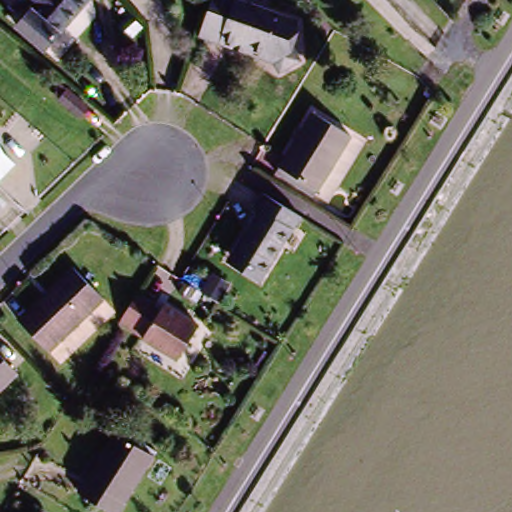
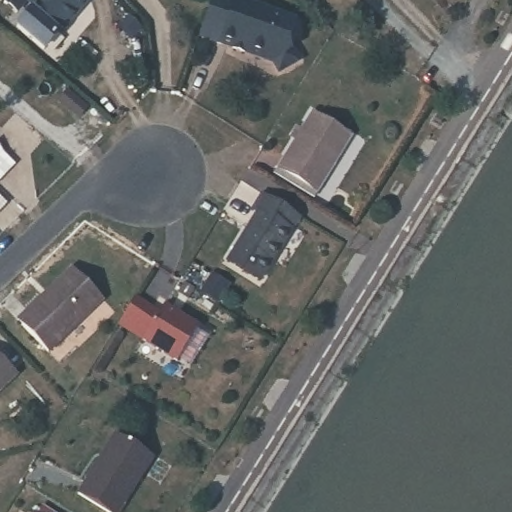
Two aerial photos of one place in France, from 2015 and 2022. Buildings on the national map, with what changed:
unchanged [(49,50),(22,27),(40,6),(33,0),(23,11),(11,1),(12,0),(93,0),(49,50)]
unchanged [(214,0),(238,0),(237,1),(296,22),(288,41),(300,61),(279,72),(268,53),(247,45),(245,52),(232,48),(235,41),(223,37),(221,44),(200,36),(214,0)]
unchanged [(59,101),(67,91),(87,106),(78,116),(59,101)]
unchanged [(314,197),(275,174),(275,173),(312,113),(352,136),(314,197)]
unchanged [(15,166),(0,181),(0,150),(3,155),(15,166)]
unchanged [(228,261),(231,256),(258,212),(252,209),(262,194),(300,217),(291,232),(290,231),(262,275),(260,280),(228,261)]
unchanged [(0,210),(0,199),(5,205),(0,210)]
unchanged [(68,273),(98,305),(43,357),(13,326),(68,273)]
unchanged [(197,293),(192,302),(178,295),(184,285),(197,293)]
unchanged [(130,297),(148,308),(147,310),(153,315),(160,305),(194,327),(172,361),(138,340),(138,338),(115,323),(130,297)]
unchanged [(6,395),(0,401),(0,366),(15,381),(17,385),(6,395)]
unchanged [(115,433),(152,456),(119,512),(107,512),(78,494),(115,433)]

